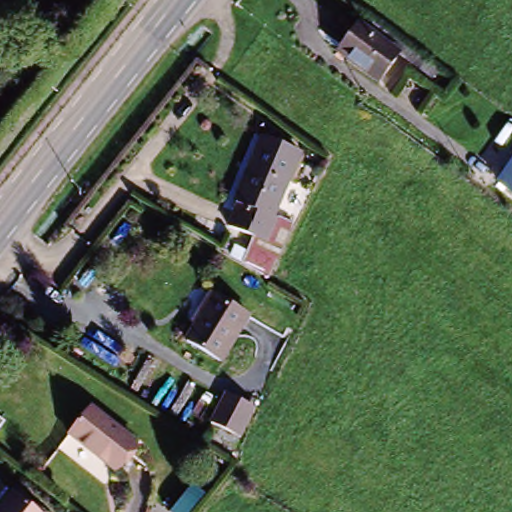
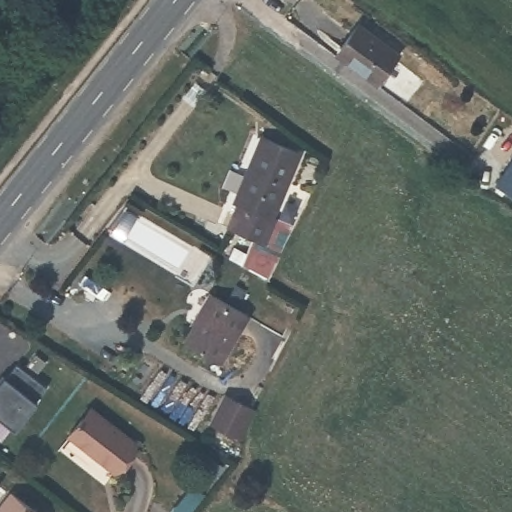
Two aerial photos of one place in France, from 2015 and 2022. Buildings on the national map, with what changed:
unchanged [(370,34),(376,26),(440,74),(432,82),(400,57),(380,85),(345,59),(337,53),(344,44),(359,25),(370,34)]
unchanged [(300,153),(299,155),(273,216),(278,219),(277,222),(267,242),(255,237),(230,227),(239,205),(235,204),(251,166),(264,139),(300,153)]
unchanged [(512,186),(505,195),(490,185),(512,154),(512,186)]
unchanged [(255,237),(267,242),(277,222),(278,219),(297,229),(271,281),(247,267),(256,247),(255,237)]
unchanged [(243,310),(216,356),(183,338),(209,291),(243,310)]
new [(5,376),(7,378),(8,379),(20,366),(49,390),(37,404),(39,405),(16,432),(0,419),(0,382),(5,376)]
unchanged [(260,415),(259,417),(243,443),(216,426),(233,399),(260,415)]
unchanged [(99,456),(71,433),(92,408),(137,443),(119,467),(117,470),(99,456)]
unchanged [(13,495),(35,512),(0,512),(0,511),(13,495)]

